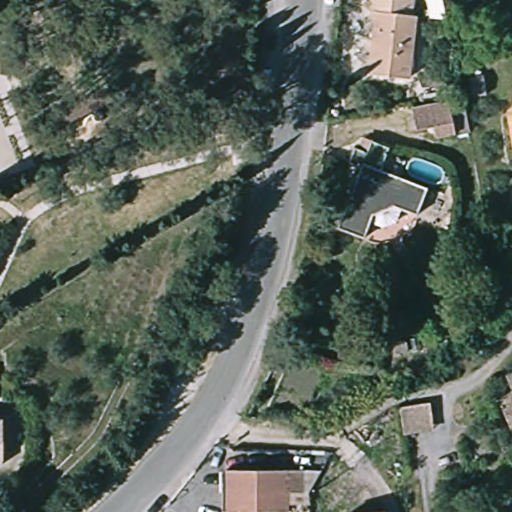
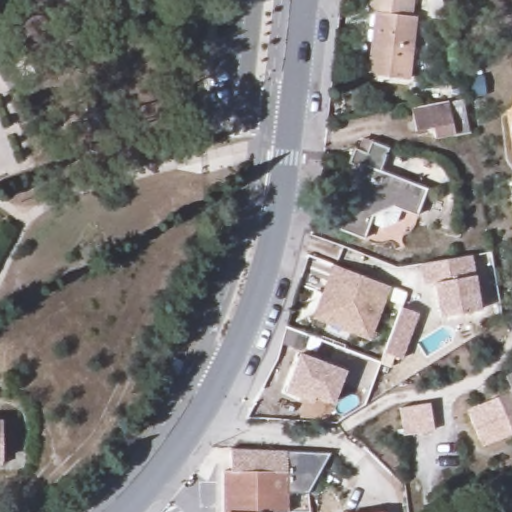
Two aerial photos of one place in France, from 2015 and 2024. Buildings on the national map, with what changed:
unchanged [(374,11),(368,11),(369,0),(410,0),(408,13),(414,14),(405,80),(366,75),(374,11)]
unchanged [(463,97),(469,129),(434,137),(432,126),(415,130),(410,110),(463,97)]
unchanged [(358,169),(346,165),(353,146),(360,149),(365,137),(390,148),(381,170),(428,188),(416,218),(400,211),(396,222),(379,230),(370,225),(364,241),(334,230),(358,169)]
new [(441,317),(435,282),(424,285),(420,263),(473,255),(476,275),(482,308),(441,317)]
new [(391,286),(370,341),(312,318),(332,264),(391,286)]
new [(395,356),(391,367),(381,362),(384,351),(402,306),(420,313),(403,358),(395,356)]
demolished [(394,355),(392,341),(405,339),(407,353),(394,355)]
new [(341,363),(340,367),(348,371),(334,406),(318,398),(314,405),(285,392),(288,387),(286,386),(299,352),(302,352),(304,348),(341,363)]
unchanged [(166,372),(173,357),(184,362),(177,377),(166,372)]
unchanged [(492,403),(507,396),(501,381),(512,376),(512,437),(508,438),(492,403)]
unchanged [(408,431),(404,403),(434,398),(439,427),(408,431)]
new [(508,438),(478,452),(463,416),(492,403),(508,438)]
unchanged [(9,427),(9,450),(0,449),(0,427),(9,427)]
new [(287,451),(331,453),(321,476),(224,475),(224,471),(231,471),(231,449),(287,451)]
unchanged [(286,499),(286,512),(224,512),(224,475),(321,476),(308,498),(286,499)]
unchanged [(382,511),(382,512),(374,512),(382,511)]

